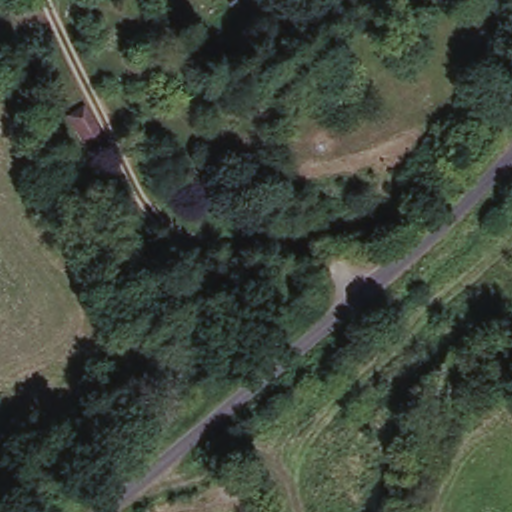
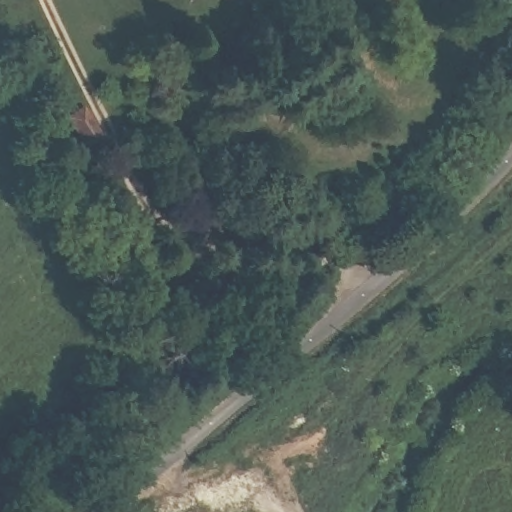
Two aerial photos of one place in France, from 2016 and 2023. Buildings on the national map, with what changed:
unchanged [(217,0),(221,0),(217,2),(217,0)]
unchanged [(86,111),(107,134),(95,146),(74,122),(86,111)]

